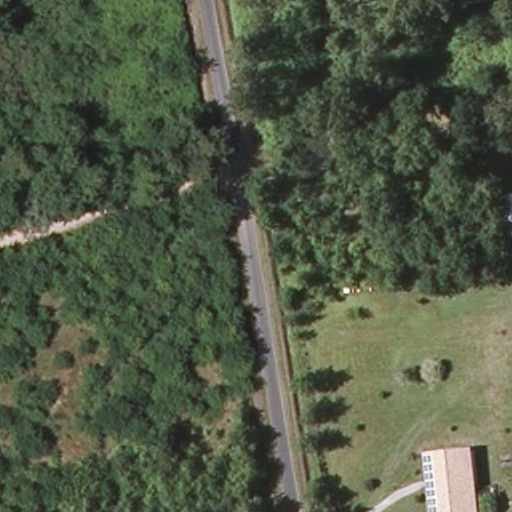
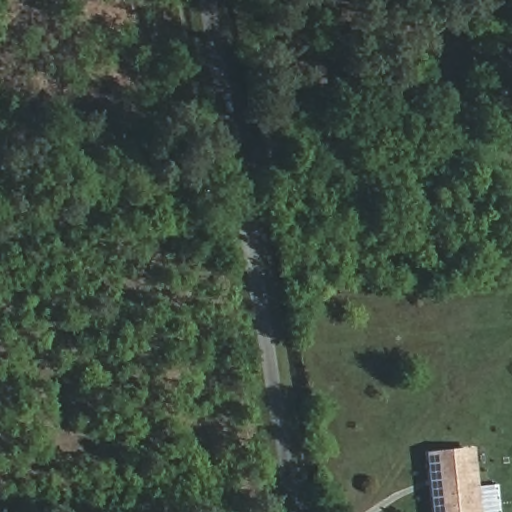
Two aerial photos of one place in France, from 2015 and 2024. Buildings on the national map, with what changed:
unchanged [(466,151),(480,145),(487,177),(473,180),(466,151)]
unchanged [(504,194),(512,193),(512,239),(512,240),(504,194)]
unchanged [(425,452),(474,448),(481,512),(431,512),(425,452)]

